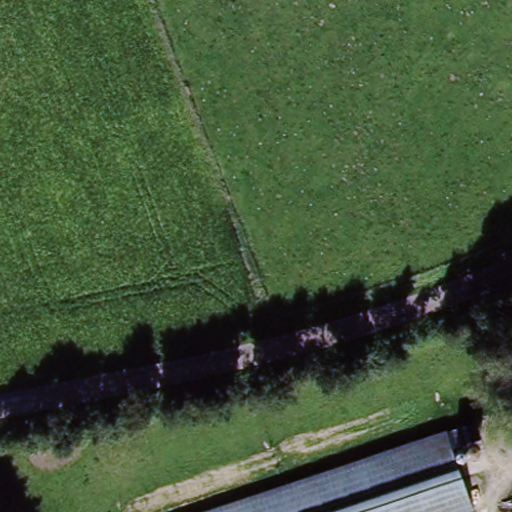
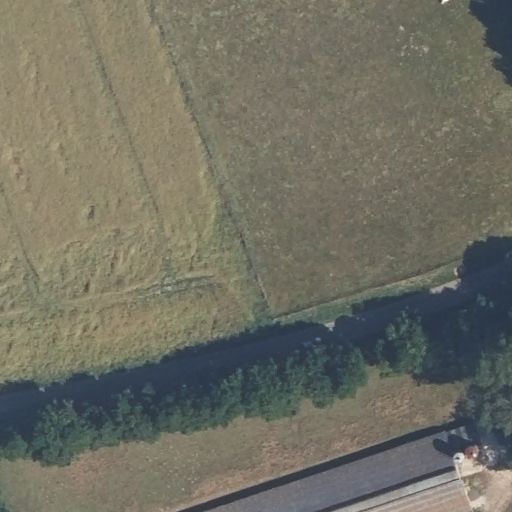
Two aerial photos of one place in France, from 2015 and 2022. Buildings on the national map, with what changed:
unchanged [(476,512),(176,512),(458,439),(476,512)]

